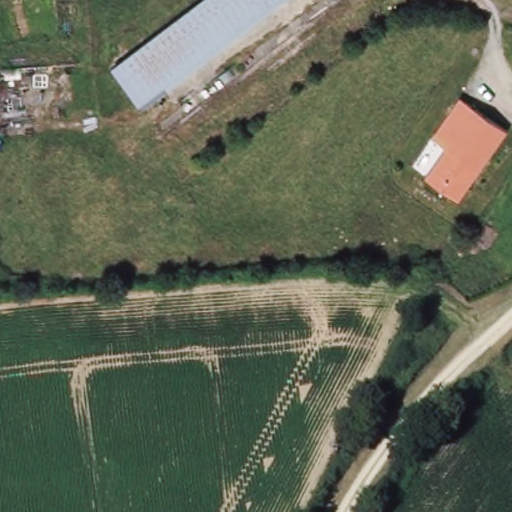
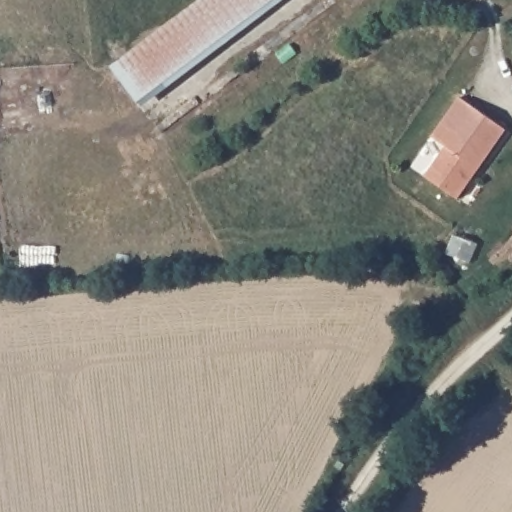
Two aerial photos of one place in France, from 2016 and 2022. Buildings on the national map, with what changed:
unchanged [(206,0),(273,0),(144,107),(116,73),(206,0)]
unchanged [(443,152),(426,142),(458,98),(502,128),(455,202),(424,179),(443,152)]

